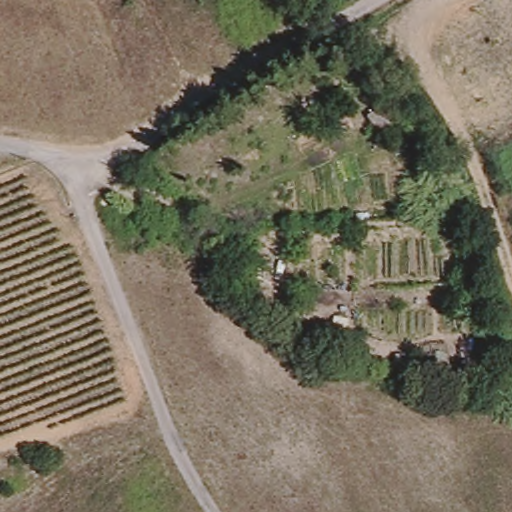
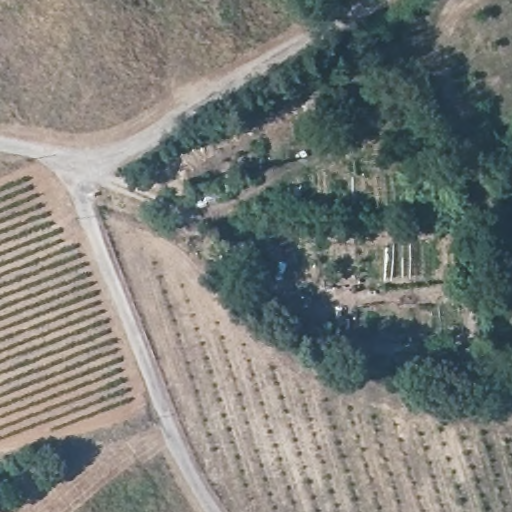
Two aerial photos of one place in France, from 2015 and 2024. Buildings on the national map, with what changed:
unchanged [(385,112),(396,130),(380,136),(373,118),(385,112)]
unchanged [(248,258),(223,258),(223,243),(248,243),(248,258)]

